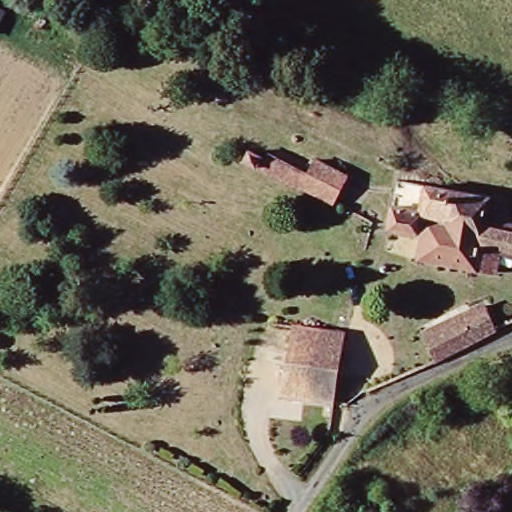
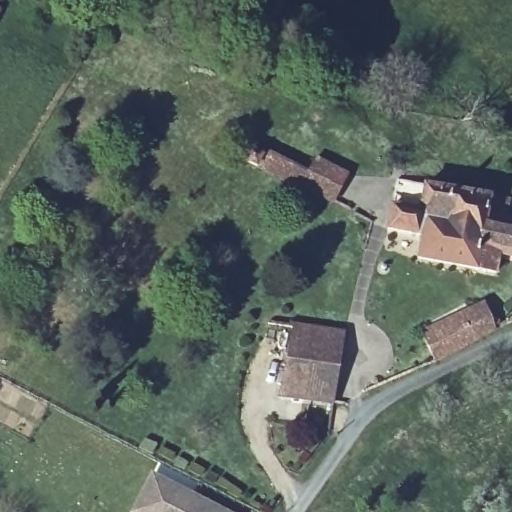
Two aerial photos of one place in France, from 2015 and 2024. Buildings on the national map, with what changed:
unchanged [(230,156),(238,142),(253,151),(256,145),(299,165),(292,180),(290,184),(230,156)]
unchanged [(310,144),(360,166),(343,203),(292,180),(299,165),(310,144)]
unchanged [(409,234),(378,231),(382,207),(404,213),(413,181),(485,195),(479,217),(473,247),(409,234)]
unchanged [(488,272),(406,256),(409,234),(473,247),(479,217),(512,225),(512,261),(491,256),(488,272)]
unchanged [(436,320),(470,305),(473,313),(489,304),(497,328),(430,361),(425,344),(439,338),(436,320)]
unchanged [(344,337),(328,406),(271,394),(287,322),(344,337)]
new [(229,512),(130,512),(152,472),(229,512)]

